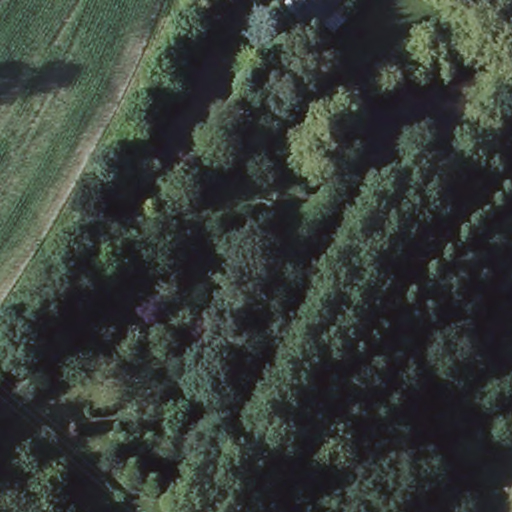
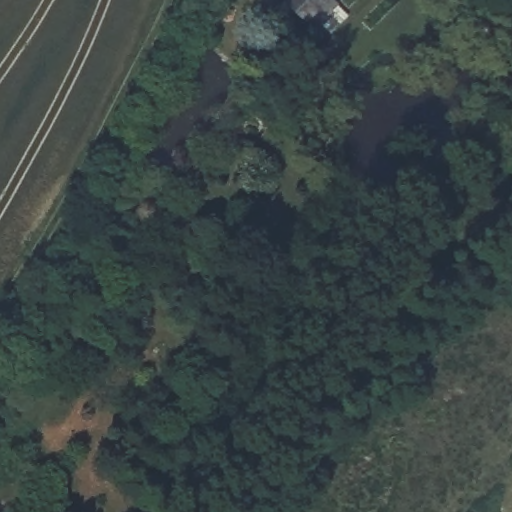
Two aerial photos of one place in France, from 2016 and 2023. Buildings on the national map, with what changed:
unchanged [(302,49),(266,17),(281,0),(338,0),(343,4),(302,49)]

